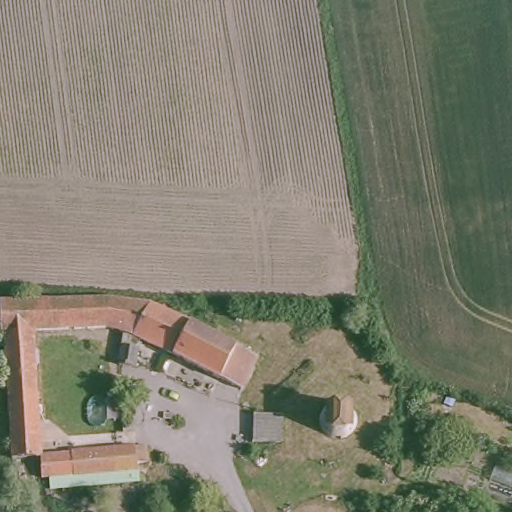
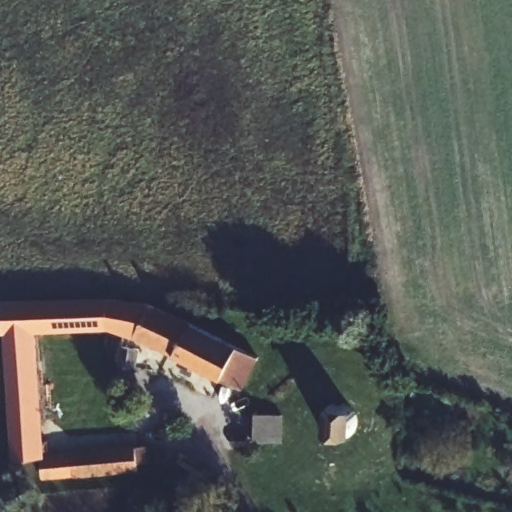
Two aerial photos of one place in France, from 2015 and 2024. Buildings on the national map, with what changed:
unchanged [(234,385),(172,353),(100,323),(27,330),(37,452),(140,441),(142,459),(129,462),(130,480),(45,490),(44,475),(31,477),(29,455),(8,458),(0,376),(0,300),(20,298),(37,297),(104,296),(160,305),(250,353),(234,385)]
unchanged [(116,345),(129,346),(130,367),(115,367),(116,345)]
unchanged [(359,423),(357,430),(352,436),(344,440),(335,441),(327,438),(322,433),(317,426),(317,420),(319,410),(324,403),(332,399),(339,398),(347,400),(354,405),(358,412),(360,420),(359,423)]
unchanged [(280,413),(285,437),(257,441),(254,415),(280,413)]

